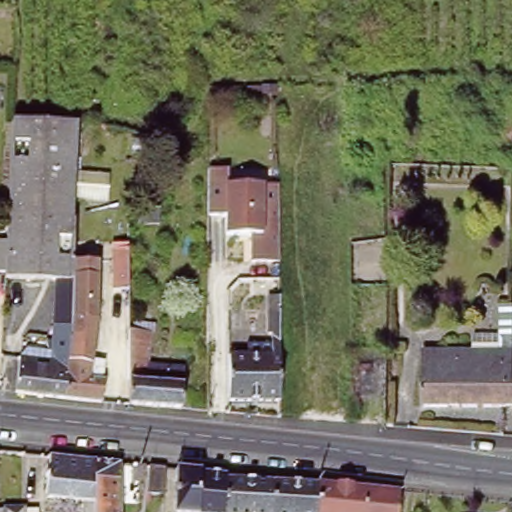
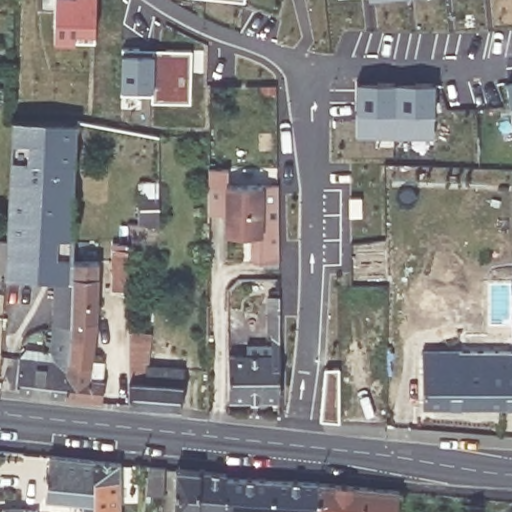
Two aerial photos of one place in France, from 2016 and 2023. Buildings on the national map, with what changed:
new [(93,0),(92,43),(72,42),(52,41),(52,32),(53,0),(93,0)]
new [(225,0),(243,0),(242,2),(225,0)]
new [(367,2),(367,0),(391,0),(386,0),(367,2)]
new [(144,97),(121,96),(122,51),(141,51),(155,51),(167,52),(194,53),(192,105),(170,105),(154,104),(154,97),(152,97),(144,97)]
new [(392,139),(375,138),(353,137),(354,92),(354,83),(375,83),(394,84),(415,84),(433,85),(432,131),(432,139),(412,139),(392,139)]
new [(505,85),(512,84),(512,127),(511,127),(505,85)]
unchanged [(75,127),(70,281),(59,283),(5,280),(12,125),(75,127)]
unchanged [(228,167),(227,179),(277,184),(278,264),(250,261),(252,234),(225,235),(225,218),(207,212),(207,166),(228,167)]
unchanged [(5,225),(3,256),(0,256),(0,225),(5,225)]
unchanged [(130,242),(131,289),(115,289),(115,249),(122,249),(122,242),(130,242)]
unchanged [(100,260),(97,318),(90,376),(110,380),(107,405),(60,401),(64,361),(67,321),(70,288),(70,281),(70,261),(100,260)]
unchanged [(50,366),(51,352),(54,352),(59,283),(70,281),(70,288),(67,321),(64,361),(60,401),(12,396),(15,362),(50,366)]
unchanged [(424,355),(474,355),(474,344),(502,345),(502,338),(502,313),(512,313),(512,410),(424,409),(424,355)]
unchanged [(267,337),(267,315),(282,315),(282,404),(230,404),(230,359),(250,360),(250,350),(272,351),(272,337),(267,337)]
unchanged [(167,383),(169,366),(186,368),(182,408),(131,403),(131,330),(153,332),(147,380),(167,383)]
demolished [(374,368),(374,364),(387,364),(387,392),(360,391),(360,368),(374,368)]
unchanged [(78,502),(43,499),(45,455),(92,460),(90,512),(78,512),(78,502)]
unchanged [(92,460),(116,462),(115,512),(90,512),(92,460)]
unchanged [(164,494),(147,493),(149,465),(164,466),(164,494)]
unchanged [(174,467),(225,472),(225,477),(223,512),(172,512),(174,467)]
unchanged [(225,477),(273,479),(271,512),(223,512),(225,477)]
unchanged [(317,480),(316,512),(271,512),(273,479),(317,480)]
unchanged [(399,490),(398,494),(395,512),(316,512),(317,480),(399,490)]
unchanged [(21,512),(0,512),(0,510),(21,512)]

